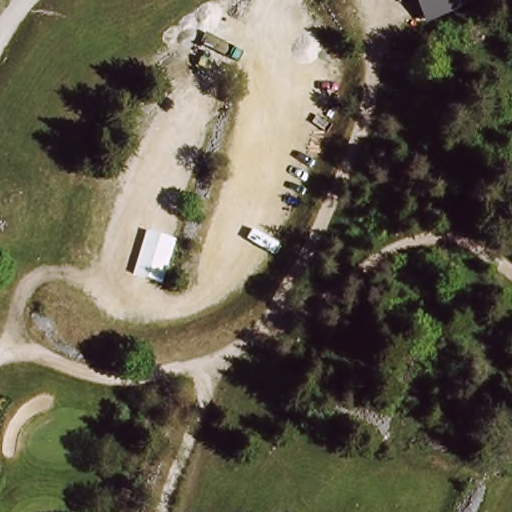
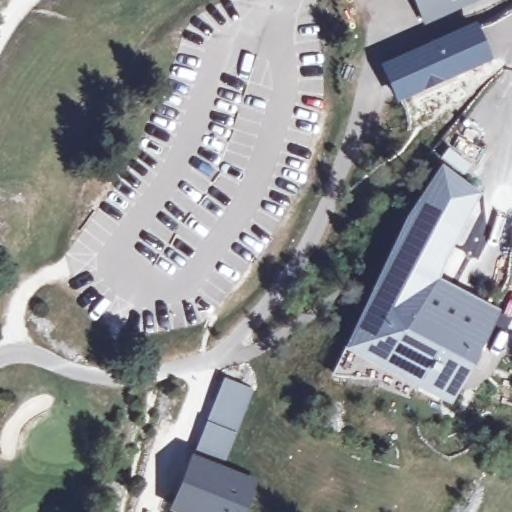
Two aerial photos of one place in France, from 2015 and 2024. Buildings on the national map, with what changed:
unchanged [(419,20),(411,0),(471,0),(419,20)]
new [(380,63),(475,22),(492,57),(396,102),(380,63)]
new [(344,348),(409,212),(441,163),(480,192),(444,263),(427,306),(487,336),(453,403),(344,348)]
new [(175,512),(169,510),(191,455),(224,378),(253,390),(223,467),(256,479),(243,512),(175,512)]

